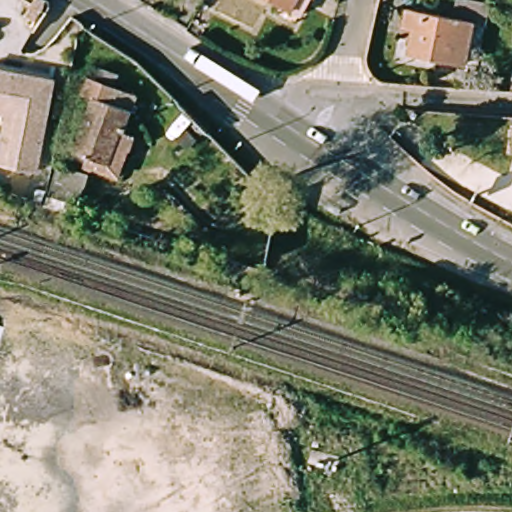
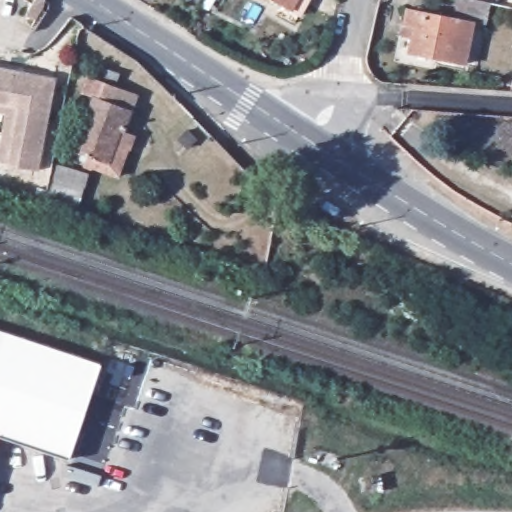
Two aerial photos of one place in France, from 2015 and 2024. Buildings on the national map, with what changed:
unchanged [(273,0),(309,0),(301,15),(273,0)]
unchanged [(411,9),(454,18),(457,0),(474,0),(492,4),(487,25),(476,23),(467,65),(411,54),(414,38),(405,35),(407,25),(411,9)]
unchanged [(40,171),(10,166),(20,106),(0,103),(0,70),(48,78),(55,79),(52,98),(44,96),(43,109),(50,110),(40,171)]
unchanged [(511,72),(512,72),(512,92),(508,91),(511,72)]
unchanged [(116,178),(83,165),(86,156),(74,151),(94,98),(82,94),(89,76),(135,95),(122,131),(131,135),(116,178)]
unchanged [(80,205),(48,195),(57,164),(89,174),(80,205)]
unchanged [(0,351),(0,326),(8,329),(0,351)]
new [(68,459),(0,436),(0,351),(6,333),(99,364),(68,459)]

